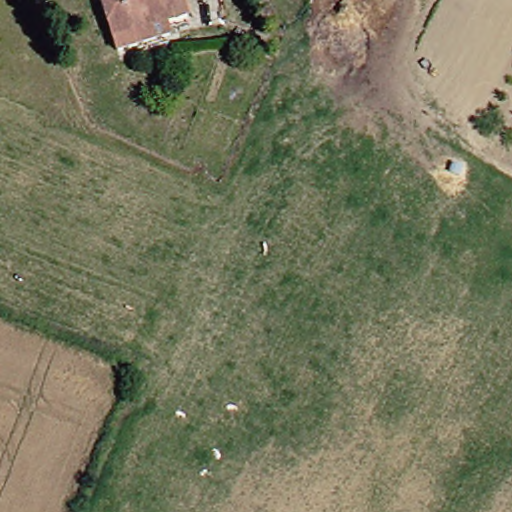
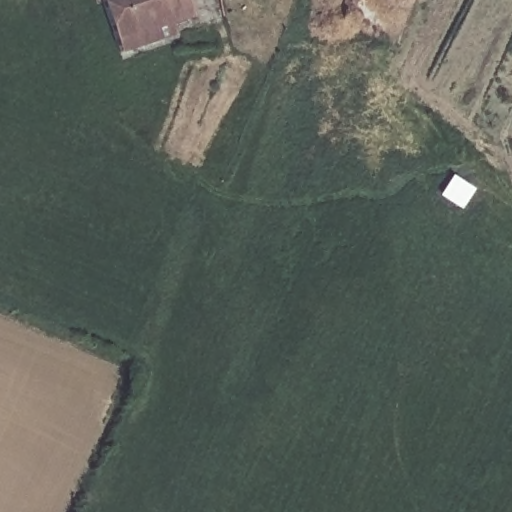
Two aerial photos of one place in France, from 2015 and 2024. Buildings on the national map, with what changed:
unchanged [(103,0),(186,0),(190,13),(167,20),(171,32),(117,47),(114,36),(103,0)]

